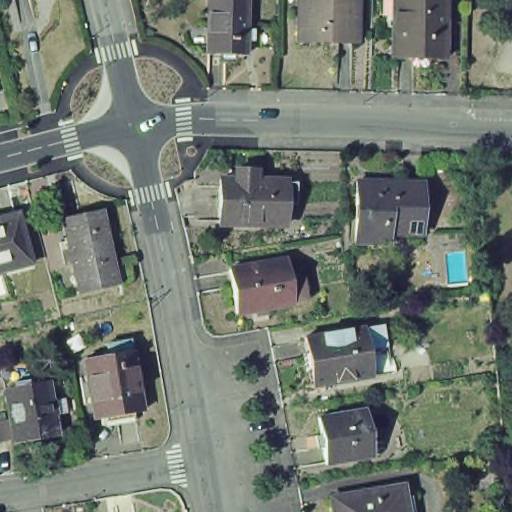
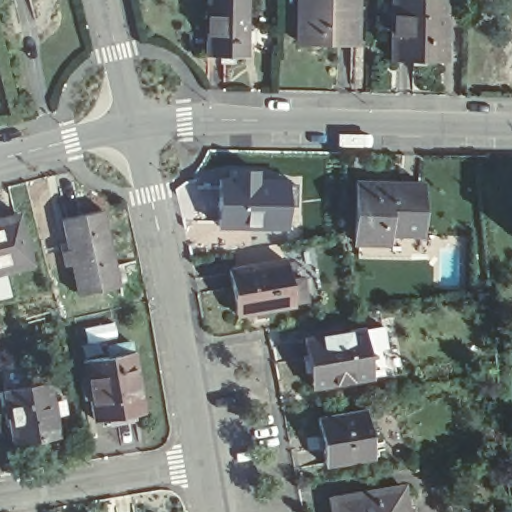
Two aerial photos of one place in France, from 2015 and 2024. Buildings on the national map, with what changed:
unchanged [(242,56),(202,55),(202,0),(242,0),(242,56)]
unchanged [(352,43),(292,42),(293,0),(353,0),(352,43)]
unchanged [(440,25),(445,25),(445,37),(439,37),(439,60),(385,59),(386,31),(376,31),(376,15),(373,15),(373,0),(440,0),(440,25)]
unchanged [(414,227),(417,229),(378,228),(377,238),(349,237),(350,177),(417,179),(414,227)]
unchanged [(280,225),(215,225),(215,180),(280,180),(280,225)]
unchanged [(19,234),(17,234),(20,244),(21,244),(25,263),(0,269),(0,214),(13,211),(19,234)]
unchanged [(94,212),(95,215),(93,215),(100,249),(102,249),(102,250),(99,251),(107,287),(110,286),(110,289),(66,298),(65,296),(68,295),(60,260),(58,260),(57,258),(59,257),(52,225),(50,225),(50,223),(94,212)]
unchanged [(302,299),(288,301),(289,304),(231,314),(223,269),(280,259),(284,278),(297,276),(302,299)]
unchanged [(358,328),(377,325),(384,366),(389,365),(390,373),(366,378),(358,328)]
unchanged [(307,387),(299,337),(358,328),(366,378),(307,387)]
unchanged [(104,355),(100,355),(100,348),(124,344),(125,355),(137,415),(88,424),(77,363),(105,358),(104,355)]
unchanged [(52,419),(55,435),(52,435),(55,455),(12,462),(4,409),(2,410),(0,398),(0,388),(7,383),(42,383),(45,402),(47,402),(50,420),(52,419)]
unchanged [(368,456),(320,465),(312,418),(360,409),(368,456)]
unchanged [(327,512),(325,497),(397,485),(401,512),(327,512)]

